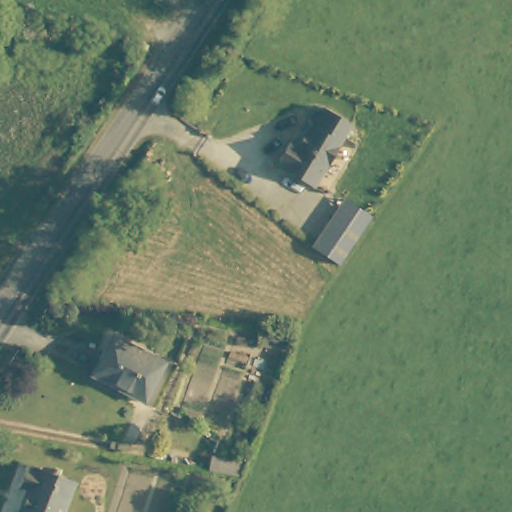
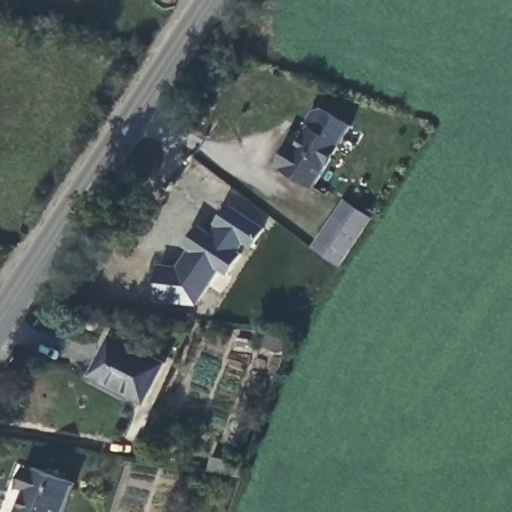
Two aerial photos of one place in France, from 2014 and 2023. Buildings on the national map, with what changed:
unchanged [(301,144),(312,125),(310,117),(316,107),(324,106),(353,123),(317,185),(279,164),(293,139),(301,144)]
unchanged [(317,247),(337,217),(349,199),(375,217),(364,234),(343,266),(317,247)]
new [(179,266),(189,250),(185,247),(199,225),(211,232),(229,205),(266,229),(253,248),(244,243),(238,252),(244,255),(230,276),(220,271),(199,306),(155,301),(160,264),(179,266)]
unchanged [(261,350),(265,334),(289,341),(284,356),(261,350)]
unchanged [(113,337),(162,363),(141,400),(91,375),(113,337)]
unchanged [(19,486),(26,467),(34,470),(35,466),(74,480),(62,512),(16,512),(25,487),(19,486)]

